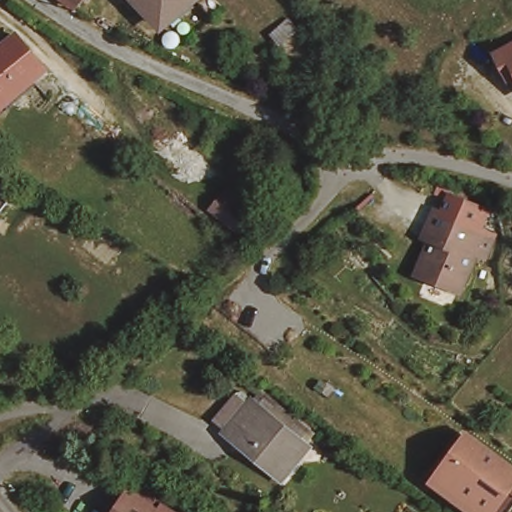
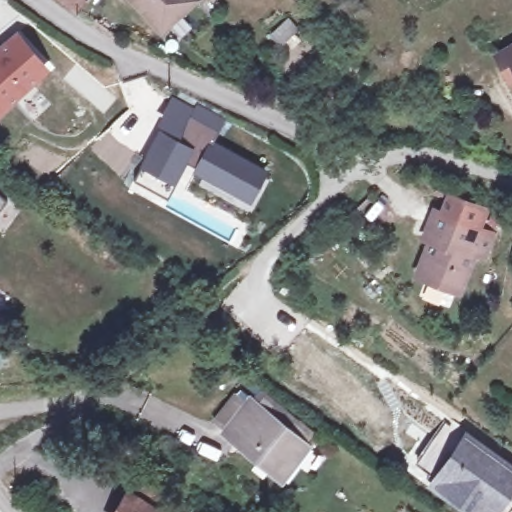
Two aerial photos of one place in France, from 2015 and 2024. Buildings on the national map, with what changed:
unchanged [(166,21),(148,0),(189,0),(166,21)]
unchanged [(48,65),(0,105),(0,51),(21,32),(48,65)]
unchanged [(499,59),(512,52),(512,83),(510,84),(499,59)]
new [(250,204),(193,173),(196,167),(187,162),(175,183),(169,199),(135,181),(141,165),(158,127),(173,95),(195,107),(197,103),(227,119),(215,142),(268,171),(250,204)]
demolished [(192,211),(213,187),(235,209),(215,232),(192,211)]
unchanged [(437,212),(445,192),(488,208),(480,227),(497,233),(485,264),(475,260),(456,303),(412,287),(432,239),(421,232),(427,222),(432,210),(437,212)]
unchanged [(0,213),(0,194),(10,202),(0,213)]
unchanged [(229,432),(253,400),(310,442),(285,475),(229,432)]
unchanged [(438,485),(443,479),(435,472),(450,452),(455,456),(467,442),(512,475),(512,486),(493,512),(469,512),(437,487),(438,485)]
unchanged [(130,494),(136,483),(160,498),(157,502),(174,512),(111,512),(122,490),(130,494)]

